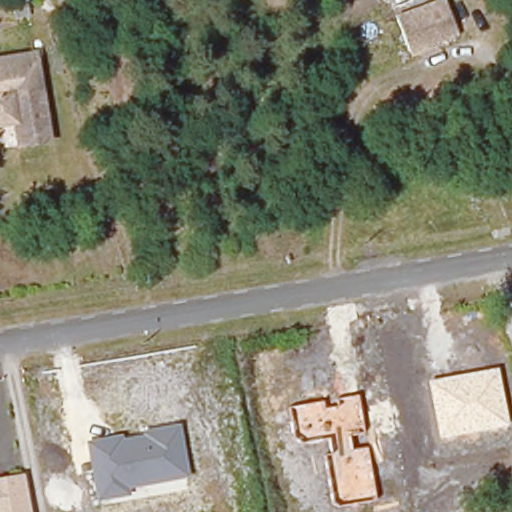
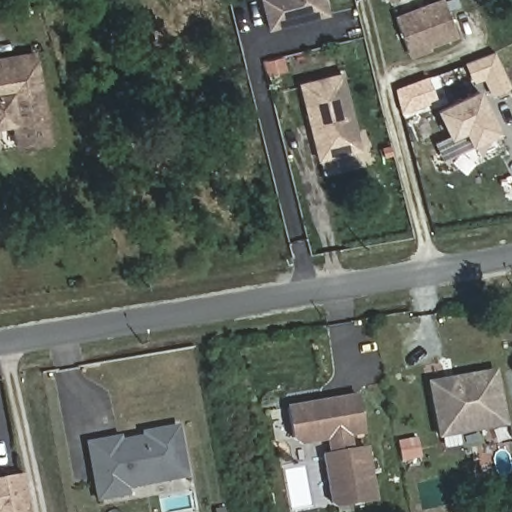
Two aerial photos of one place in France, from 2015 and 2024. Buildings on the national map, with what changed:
new [(329,16),(268,31),(261,0),(325,0),(329,16)]
unchanged [(400,51),(389,18),(441,1),(453,36),(400,51)]
unchanged [(189,90),(179,43),(210,37),(217,85),(189,90)]
unchanged [(36,49),(45,85),(6,89),(14,127),(0,130),(0,57),(36,49)]
new [(495,51),(511,88),(491,96),(484,80),(473,84),(465,64),(495,51)]
new [(318,162),(298,82),(343,71),(362,150),(318,162)]
unchanged [(45,85),(47,85),(51,141),(16,143),(14,127),(6,89),(45,85)]
new [(436,111),(480,90),(501,133),(444,161),(435,142),(448,136),(436,111)]
unchanged [(509,426),(437,439),(427,380),(497,369),(509,426)]
unchanged [(365,432),(348,434),(350,451),(368,447),(376,500),(331,507),(322,455),(330,453),(328,439),(303,445),(292,438),(288,406),(322,400),(323,408),(337,406),(336,400),(358,395),(365,432)]
unchanged [(188,478),(130,489),(130,496),(95,501),(86,440),(123,434),(125,439),(143,435),(142,430),(180,423),(188,478)]
unchanged [(29,512),(0,512),(0,477),(24,474),(29,512)]

